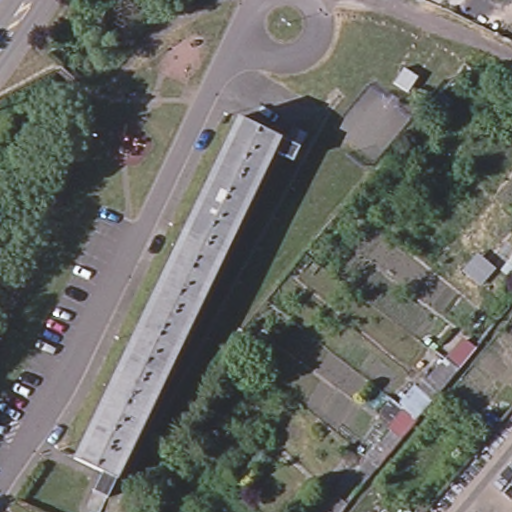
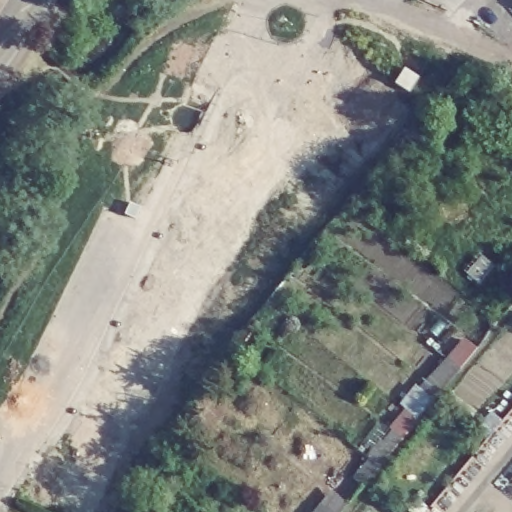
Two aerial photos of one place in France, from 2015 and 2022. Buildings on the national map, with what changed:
unchanged [(441,76),(437,87),(425,84),(429,72),(441,76)]
unchanged [(452,105),(441,117),(428,106),(440,93),(452,105)]
demolished [(106,492),(92,486),(101,467),(73,453),(238,112),(298,142),(291,157),(273,147),(106,492)]
new [(476,347),(361,487),(351,478),(367,459),(363,457),(379,437),(381,439),(390,431),(387,430),(404,409),(398,402),(415,383),(419,387),(463,337),(476,347)]
new [(341,512),(312,512),(330,490),(348,503),(341,512)]

